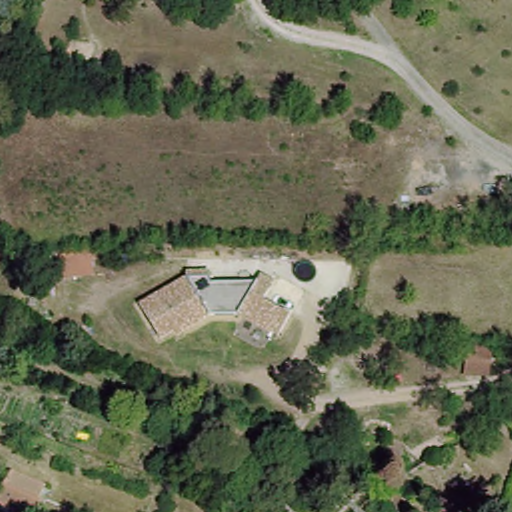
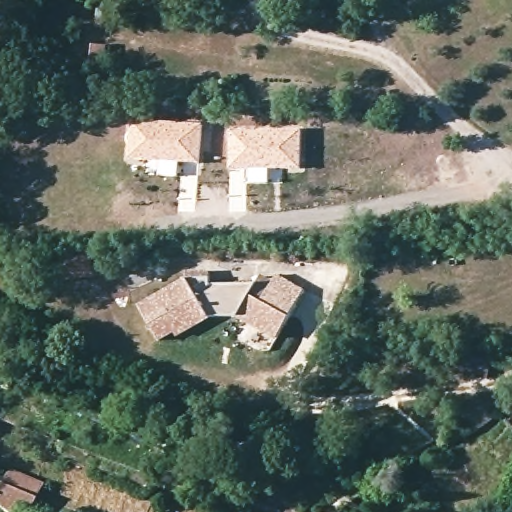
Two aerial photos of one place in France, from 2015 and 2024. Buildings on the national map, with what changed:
new [(131,120),(202,125),(200,164),(129,159),(131,120)]
new [(300,170),(231,170),(231,130),(301,130),(300,170)]
unchanged [(83,251),(83,276),(53,276),(52,252),(83,251)]
unchanged [(185,274),(195,282),(244,283),(255,276),(274,286),(267,303),(286,312),(272,341),(236,323),(203,322),(178,334),(173,333),(159,342),(137,304),(185,274)]
unchanged [(482,347),(477,373),(455,369),(460,343),(482,347)]
unchanged [(14,470),(50,486),(42,501),(34,512),(13,512),(0,501),(0,493),(5,484),(14,470)]

